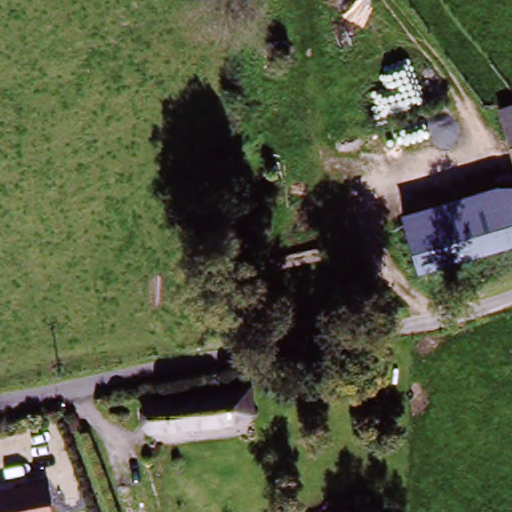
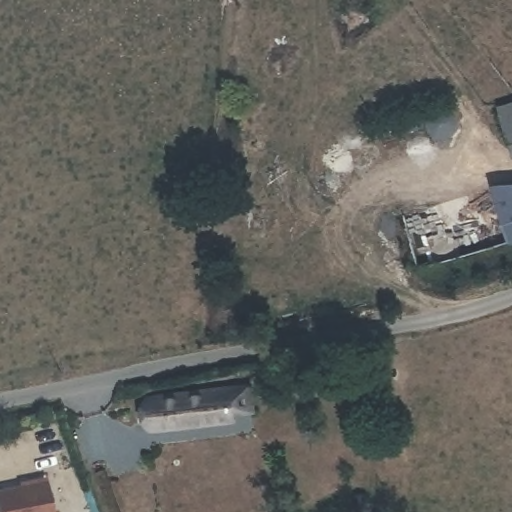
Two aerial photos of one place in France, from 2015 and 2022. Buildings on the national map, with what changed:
unchanged [(512,113),(512,161),(511,161),(500,117),(512,113)]
unchanged [(400,219),(487,192),(512,191),(512,251),(418,277),(400,219)]
unchanged [(144,406),(226,390),(249,386),(254,418),(231,422),(151,437),(144,406)]
unchanged [(46,482),(50,512),(1,512),(0,508),(0,489),(46,482)]

